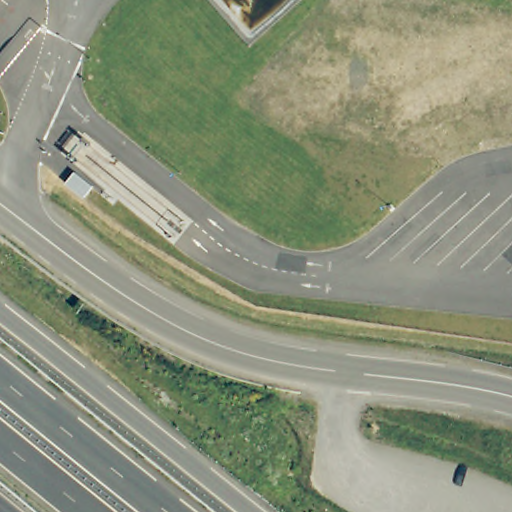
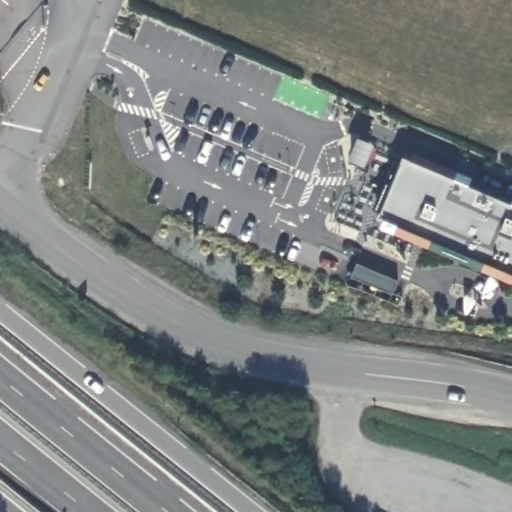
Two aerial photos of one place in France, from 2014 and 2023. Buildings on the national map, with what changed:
new [(403,157),(512,205),(512,275),(376,218),(403,157)]
new [(357,266),(398,283),(392,297),(351,279),(357,266)]

